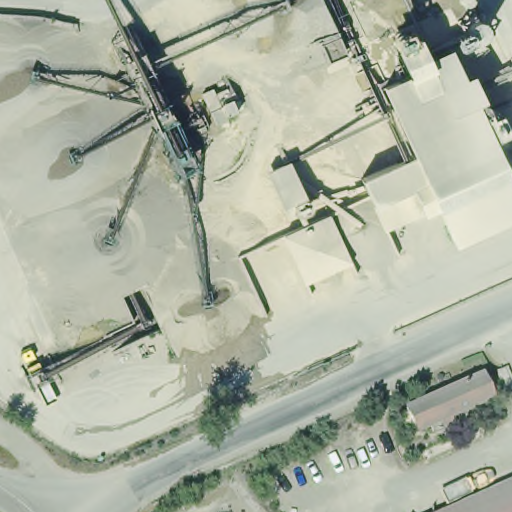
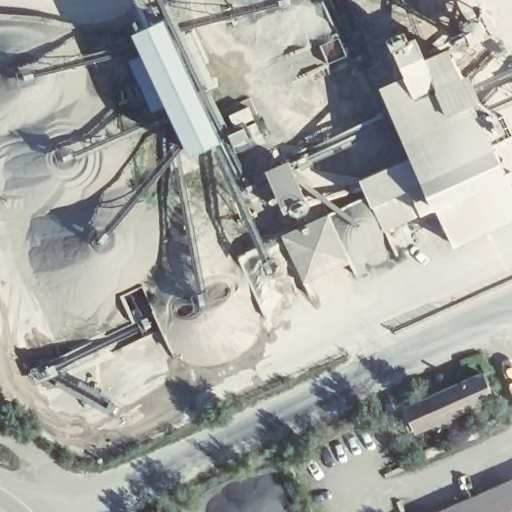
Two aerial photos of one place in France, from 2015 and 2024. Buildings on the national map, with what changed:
new [(160,22),(216,147),(180,163),(125,40),(160,22)]
unchanged [(432,208),(383,233),(353,176),(406,151),(376,83),(399,72),(387,44),(413,30),(424,57),(449,46),(512,179),(512,223),(456,251),(432,208)]
unchanged [(291,160),(312,205),(289,217),(268,170),(291,160)]
unchanged [(354,268),(309,287),(284,234),(331,215),(354,268)]
unchanged [(437,419),(442,431),(434,434),(429,424),(409,432),(399,411),(479,375),(488,397),(437,419)]
unchanged [(512,512),(443,512),(512,481),(512,512)]

